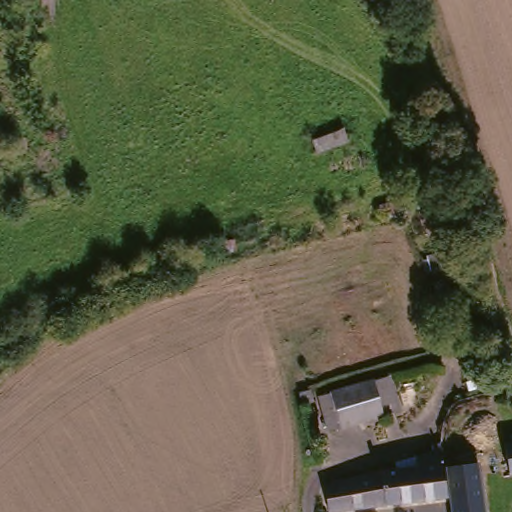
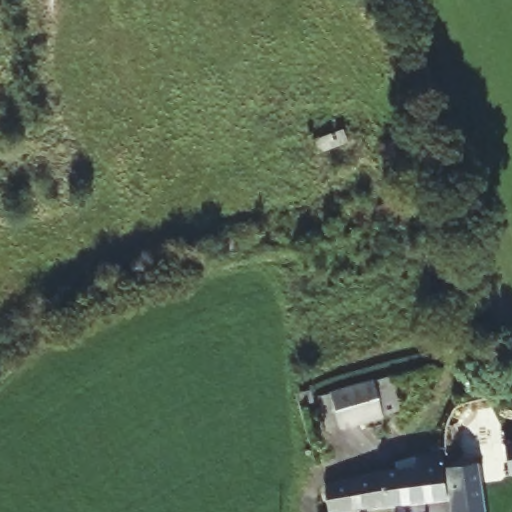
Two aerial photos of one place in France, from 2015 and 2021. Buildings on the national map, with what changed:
unchanged [(328,395),(396,375),(403,405),(336,425),(328,395)]
unchanged [(504,435),(512,435),(512,478),(506,478),(504,435)]
unchanged [(453,470),(461,470),(466,510),(466,512),(436,512),(433,500),(371,508),(364,480),(383,476),(380,460),(429,451),(428,453),(451,450),(453,470)]
unchanged [(344,512),(321,512),(316,489),(364,480),(371,508),(344,512)]

